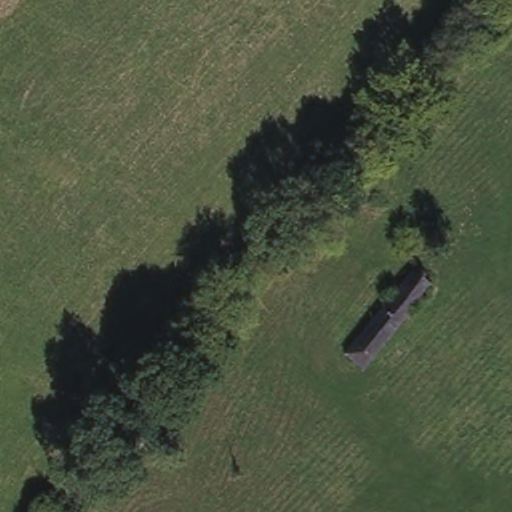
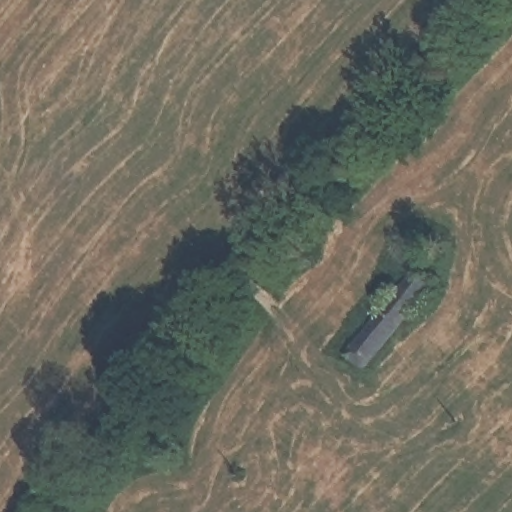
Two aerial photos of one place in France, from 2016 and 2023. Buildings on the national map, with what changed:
unchanged [(349,350),(406,280),(417,267),(436,282),(425,295),(368,364),(349,350)]

